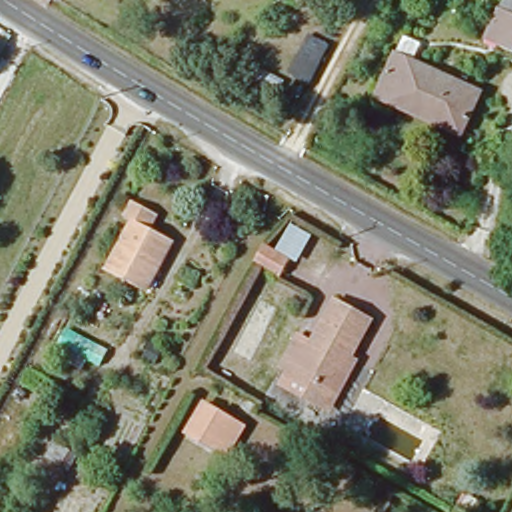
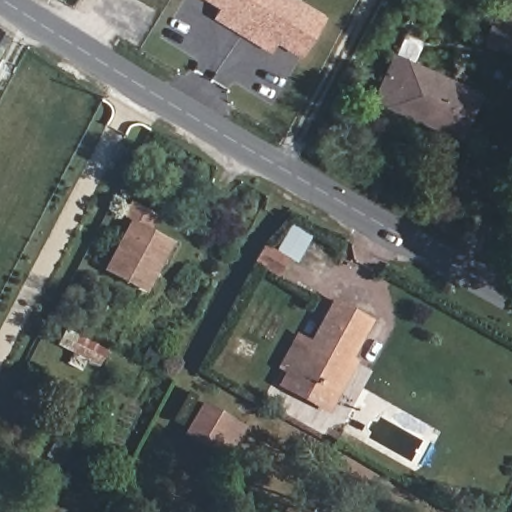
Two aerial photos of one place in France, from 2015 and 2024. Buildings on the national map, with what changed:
new [(279,44),(272,53),(214,18),(220,7),(207,0),(298,0),(327,17),(302,60),(279,44)]
unchanged [(503,0),(512,0),(512,54),(484,41),(503,0)]
unchanged [(375,99),(379,90),(394,57),(478,95),(459,129),(457,137),(375,99)]
unchanged [(104,275),(130,226),(120,221),(129,204),(152,218),(145,232),(168,244),(141,295),(104,275)]
unchanged [(264,249),(276,255),(290,223),(314,236),(297,266),(288,262),(279,279),(255,268),(264,249)]
unchanged [(323,410),(285,389),(296,371),(283,363),(294,343),(312,353),(336,306),(370,325),(323,410)]
unchanged [(54,347),(61,331),(105,352),(96,370),(54,347)]
unchanged [(206,399),(249,428),(227,461),(182,433),(206,399)]

